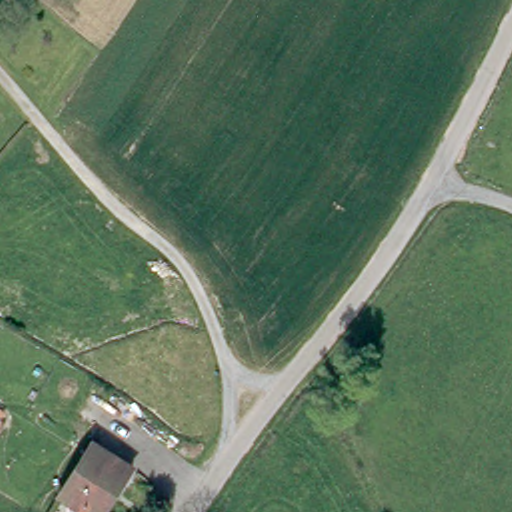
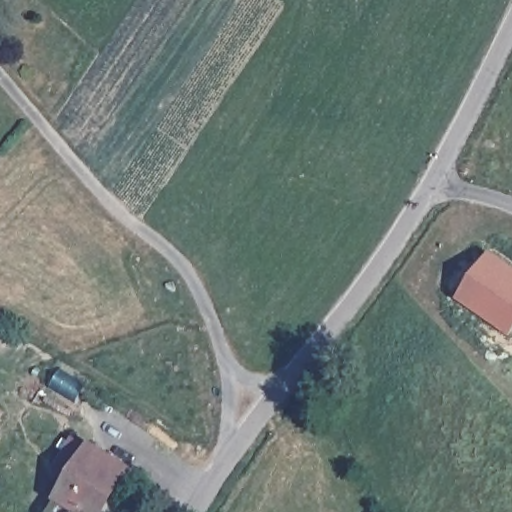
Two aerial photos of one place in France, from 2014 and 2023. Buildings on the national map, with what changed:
new [(512,268),(512,329),(509,333),(460,298),(492,254),(512,268)]
unchanged [(123,489),(112,483),(95,512),(76,512),(57,502),(92,440),(137,465),(123,489)]

